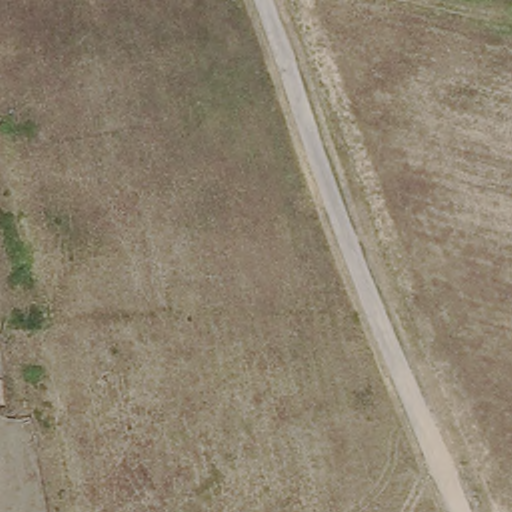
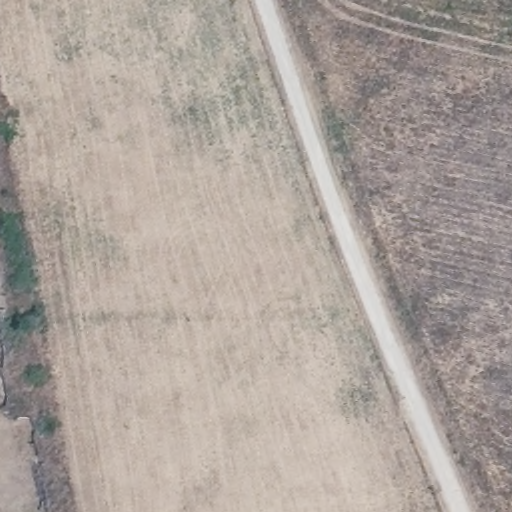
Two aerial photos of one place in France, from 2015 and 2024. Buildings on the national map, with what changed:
[]

